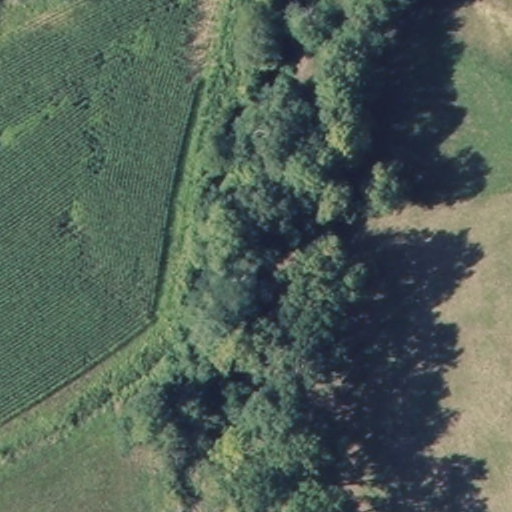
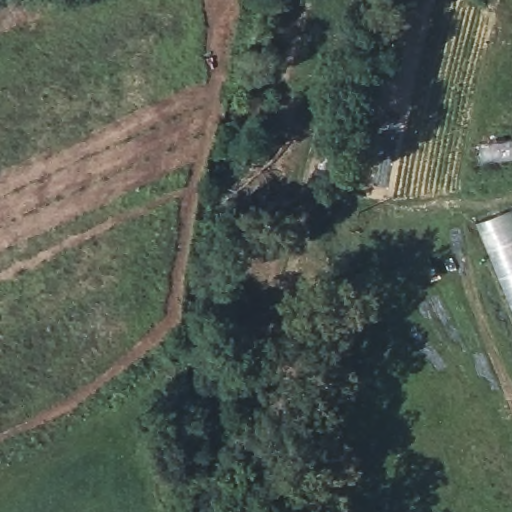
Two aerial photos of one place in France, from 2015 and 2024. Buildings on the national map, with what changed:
new [(499,250),(497,245),(490,249),(479,223),(505,212),(512,228),(512,298),(496,261),(499,250)]

